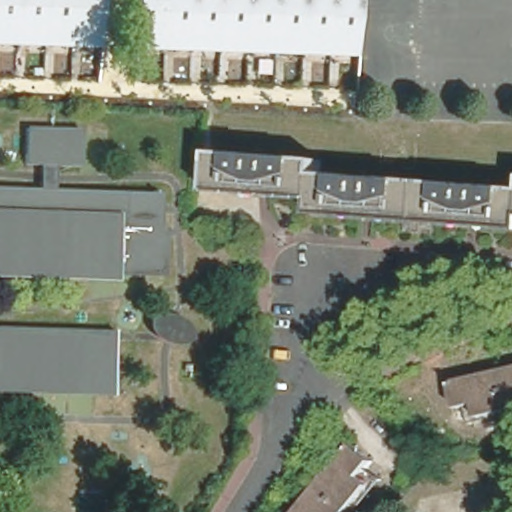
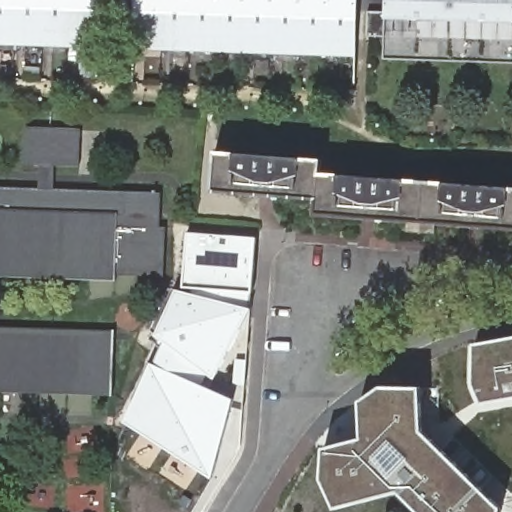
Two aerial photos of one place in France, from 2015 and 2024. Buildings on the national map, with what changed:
unchanged [(101,47),(0,44),(0,0),(101,0),(101,47)]
unchanged [(137,0),(358,0),(358,57),(136,48),(137,0)]
new [(386,0),(512,0),(512,63),(385,59),(386,0)]
unchanged [(35,189),(36,165),(19,165),(20,129),(48,130),(76,131),(75,167),(48,166),(48,189),(156,193),(155,227),(160,228),(158,276),(111,274),(111,281),(0,277),(0,187),(35,189)]
unchanged [(466,226),(430,223),(429,231),(412,230),(413,222),(376,219),(361,218),(316,215),(317,200),(273,197),(258,195),(213,192),(216,152),(321,161),(320,174),(512,189),(512,229),(481,227),(466,226)]
new [(259,237),(253,293),(226,291),(226,301),(250,308),(243,403),(234,400),(215,481),(126,422),(152,361),(155,363),(165,340),(159,334),(178,289),(194,293),(195,287),(185,287),(187,230),(259,237)]
demolished [(189,343),(184,345),(174,346),(163,344),(152,338),(145,331),(143,325),(146,317),(151,312),(164,310),(175,312),(186,321),(193,333),(189,343)]
unchanged [(113,332),(111,398),(0,393),(0,328),(113,332)]
new [(512,398),(480,403),(474,385),(474,345),(512,338),(512,398)]
demolished [(512,368),(512,409),(479,417),(476,403),(457,408),(451,383),(512,368)]
new [(501,509),(500,512),(418,512),(396,492),(336,508),(323,479),(323,449),(361,438),(362,402),(380,387),(422,387),(423,433),(501,509)]
demolished [(372,461),(359,477),(370,486),(349,512),(298,512),(352,445),(372,461)]

